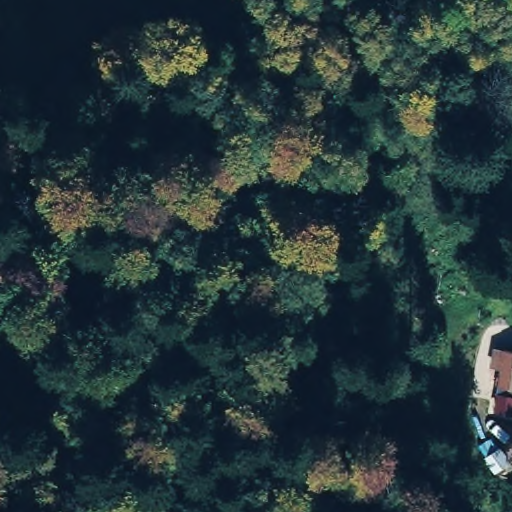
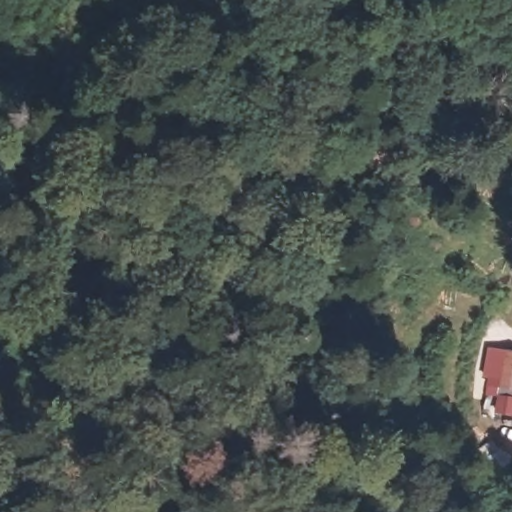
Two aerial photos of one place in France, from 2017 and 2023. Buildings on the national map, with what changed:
unchanged [(512,351),(512,387),(497,383),(496,348),(512,351)]

